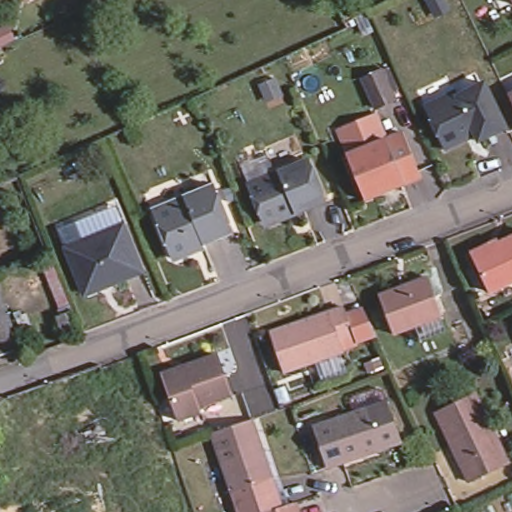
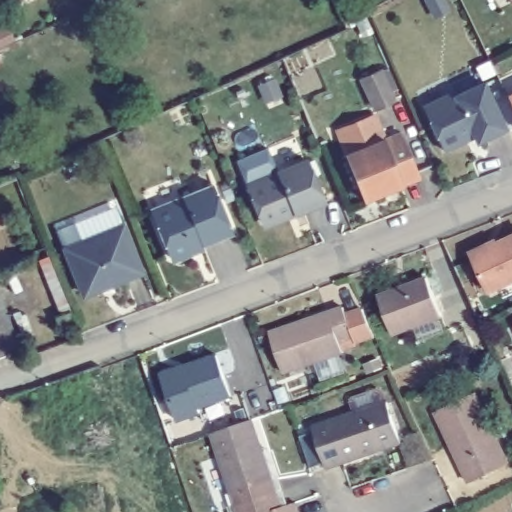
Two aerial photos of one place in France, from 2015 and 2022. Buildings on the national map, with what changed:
unchanged [(25,0),(28,0),(26,2),(25,0)]
unchanged [(453,9),(440,17),(431,0),(448,0),(453,9)]
unchanged [(0,50),(0,40),(13,34),(18,45),(1,52),(0,50)]
unchanged [(392,104),(374,110),(363,80),(381,74),(392,104)]
unchanged [(427,107),(458,91),(460,96),(487,83),(508,126),(482,140),(477,129),(467,134),(469,138),(448,149),(427,107)]
unchanged [(505,95),(512,91),(512,107),(505,95)]
unchanged [(353,157),(408,137),(423,180),(368,200),(353,157)]
unchanged [(275,225),(266,221),(254,186),(314,164),(329,205),(300,215),(290,219),(275,225)]
unchanged [(237,238),(207,250),(205,247),(196,250),(193,259),(182,263),(174,260),(156,212),(149,194),(181,182),(188,200),(218,189),(237,238)]
unchanged [(86,291),(69,247),(128,224),(147,272),(92,293),(86,291)]
unchanged [(467,252),(491,241),(490,238),(512,227),(512,272),(483,285),(467,252)]
unchanged [(415,336),(410,321),(390,329),(375,291),(425,272),(440,310),(445,325),(415,336)]
unchanged [(346,345),(286,365),(273,325),(346,301),(348,306),(363,301),(372,318),(373,323),(342,333),(346,345)]
unchanged [(20,348),(8,352),(0,355),(0,310),(5,308),(20,348)]
unchanged [(222,394),(189,404),(191,411),(174,416),(160,377),(158,371),(180,364),(210,354),(222,394)]
unchanged [(323,464),(310,423),(356,408),(351,392),(380,383),(385,399),(398,441),(340,459),(323,464)]
unchanged [(432,410),(472,391),(505,460),(465,479),(432,410)]
unchanged [(252,512),(237,512),(210,430),(250,416),(278,503),(294,498),(299,512),(254,512),(252,512)]
unchanged [(0,512),(0,497),(105,470),(119,512),(0,512)]

